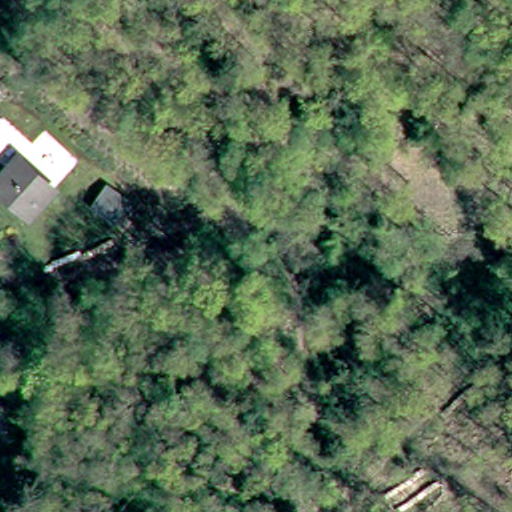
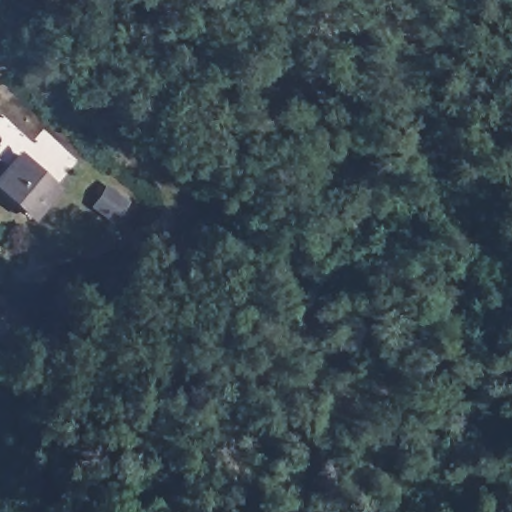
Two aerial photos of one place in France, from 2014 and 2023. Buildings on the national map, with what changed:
unchanged [(13,152),(49,189),(25,212),(0,188),(0,167),(13,152)]

